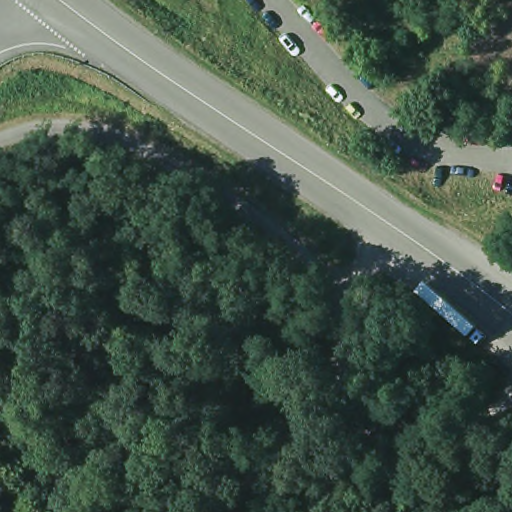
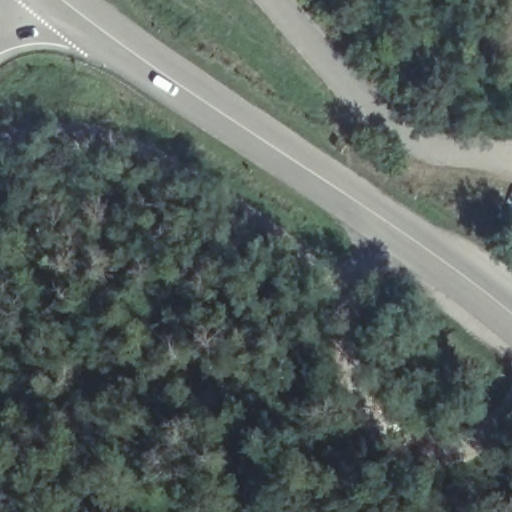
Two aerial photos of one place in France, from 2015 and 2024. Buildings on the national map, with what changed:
unchanged [(416,332),(464,378),(435,407),(387,362),(416,332)]

